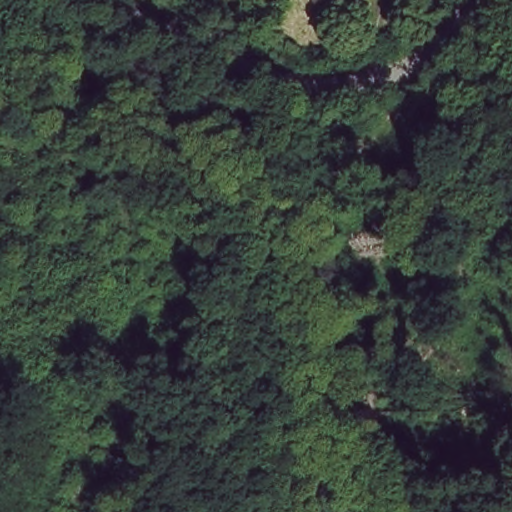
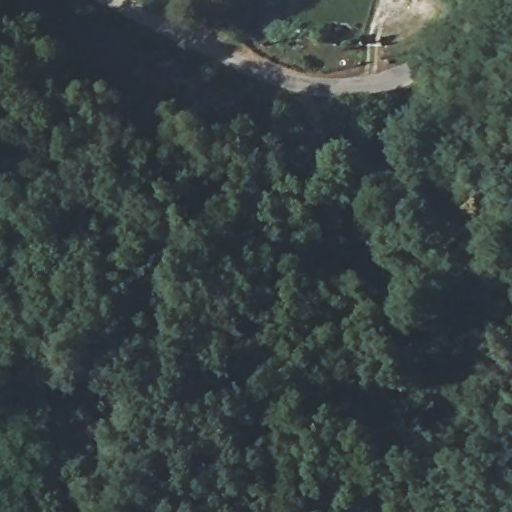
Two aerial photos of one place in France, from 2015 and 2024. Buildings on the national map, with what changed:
[]

